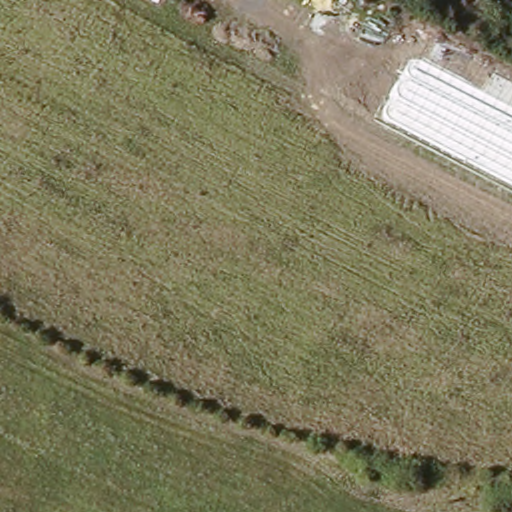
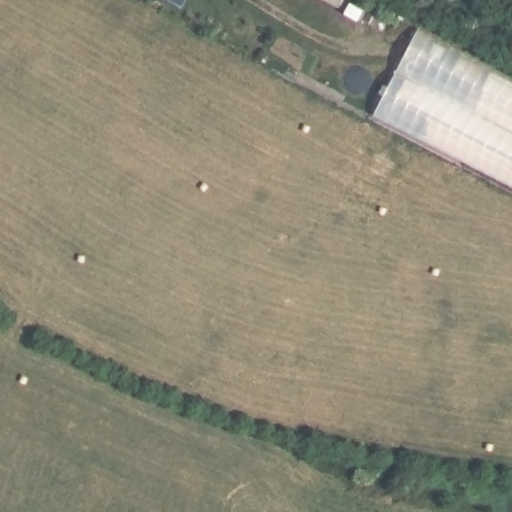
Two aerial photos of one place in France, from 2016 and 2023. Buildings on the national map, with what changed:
new [(423,31),(512,78),(512,204),(369,125),(423,31)]

